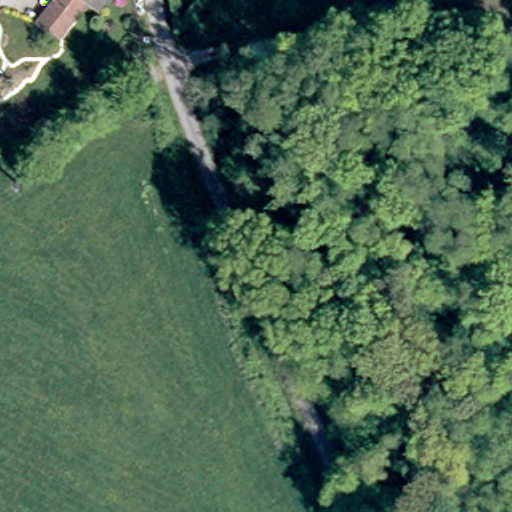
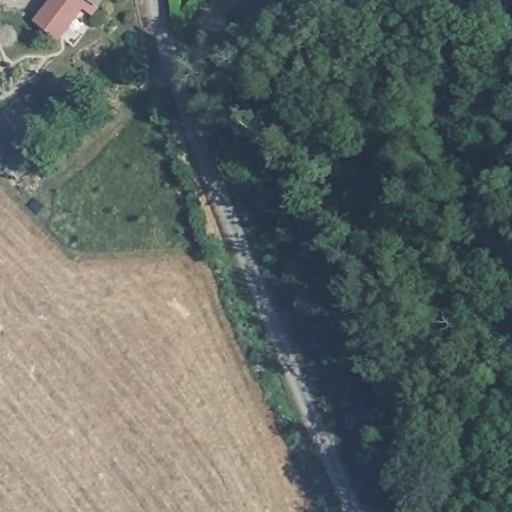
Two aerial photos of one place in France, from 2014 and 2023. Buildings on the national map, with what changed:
unchanged [(60,32),(42,19),(55,0),(83,0),(60,32)]
unchanged [(100,1),(98,0),(100,0),(100,1)]

